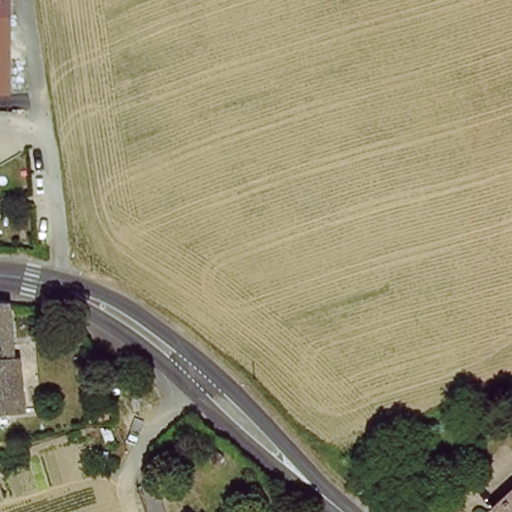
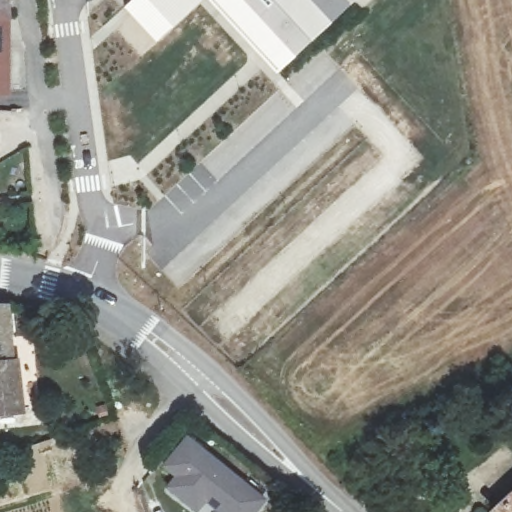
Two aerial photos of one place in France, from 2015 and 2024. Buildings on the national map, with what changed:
unchanged [(0,0),(6,0),(10,10),(0,9),(0,0)]
new [(208,0),(156,47),(125,10),(136,0),(208,0)]
new [(209,0),(360,0),(277,76),(209,0)]
unchanged [(0,90),(0,9),(10,10),(5,90),(0,90)]
unchanged [(15,415),(0,415),(0,306),(8,306),(15,415)]
new [(181,437),(260,498),(249,512),(217,512),(205,503),(198,512),(193,512),(163,488),(171,477),(158,466),(181,437)]
unchanged [(512,492),(512,512),(491,512),(512,492)]

